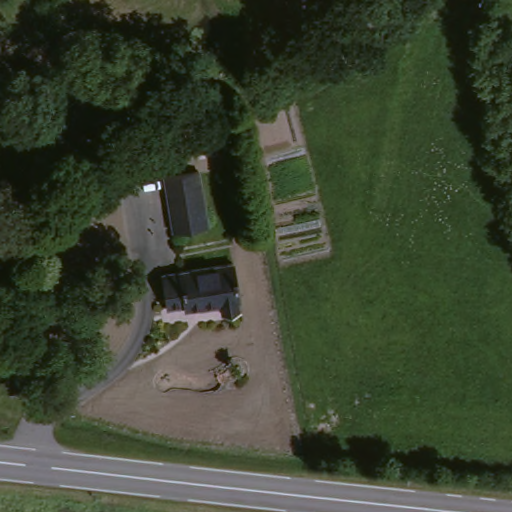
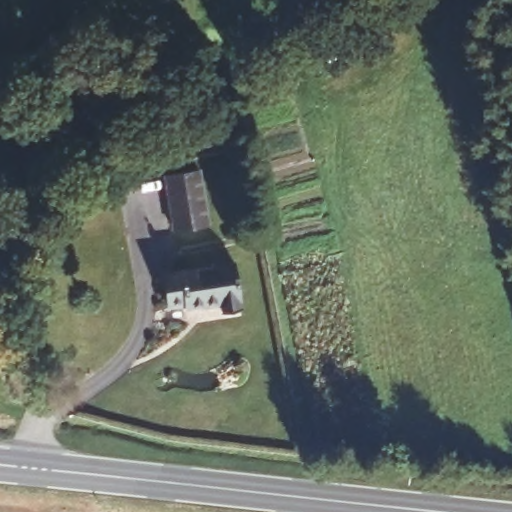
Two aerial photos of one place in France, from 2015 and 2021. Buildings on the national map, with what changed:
unchanged [(109,98),(120,122),(90,137),(102,159),(70,174),(48,129),(109,98)]
unchanged [(200,167),(210,222),(176,229),(166,174),(200,167)]
unchanged [(240,259),(251,310),(230,312),(228,303),(195,309),(193,302),(174,306),(168,272),(240,259)]

